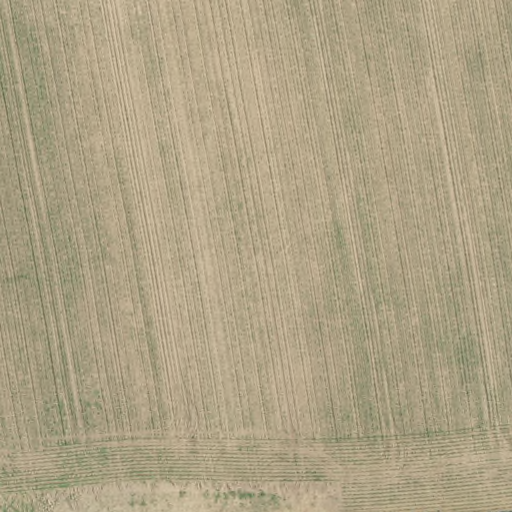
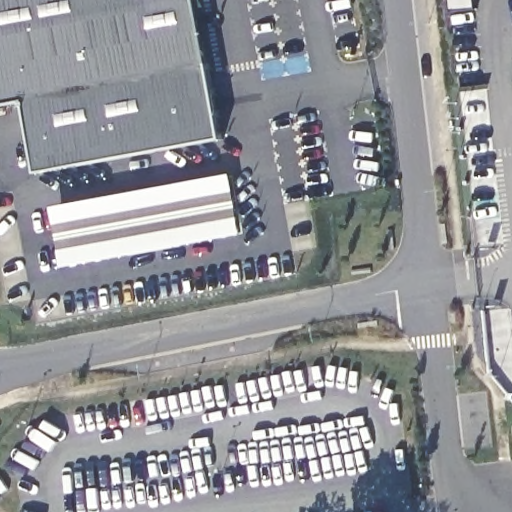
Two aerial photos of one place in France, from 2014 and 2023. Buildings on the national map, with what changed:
new [(37,174),(24,103),(0,107),(0,0),(197,0),(223,141),(37,174)]
new [(453,12),(452,0),(475,0),(476,9),(453,12)]
new [(231,176),(242,235),(64,268),(52,209),(231,176)]

